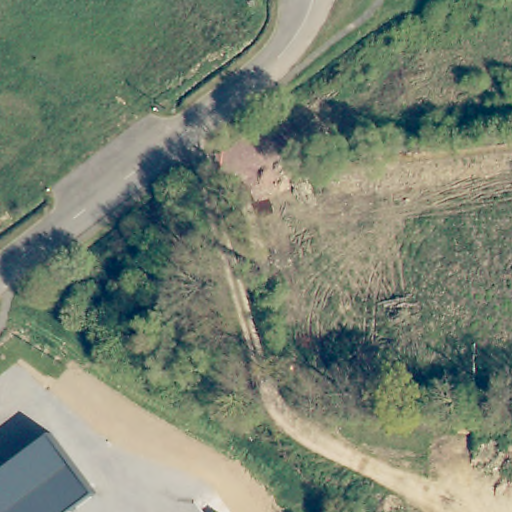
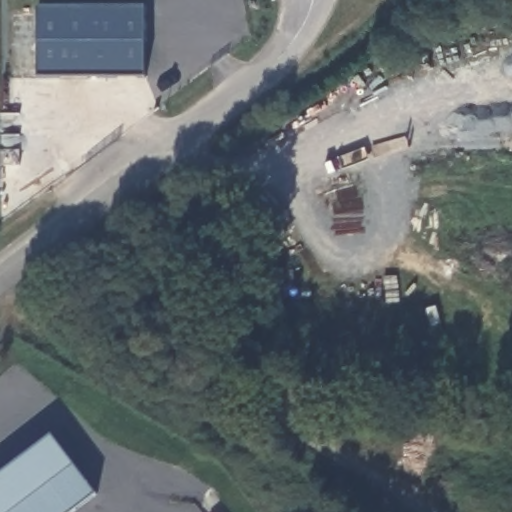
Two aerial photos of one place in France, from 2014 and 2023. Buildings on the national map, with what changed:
new [(39,8),(145,7),(144,78),(36,77),(39,8)]
unchanged [(97,494),(73,512),(0,512),(0,474),(52,434),(97,494)]

